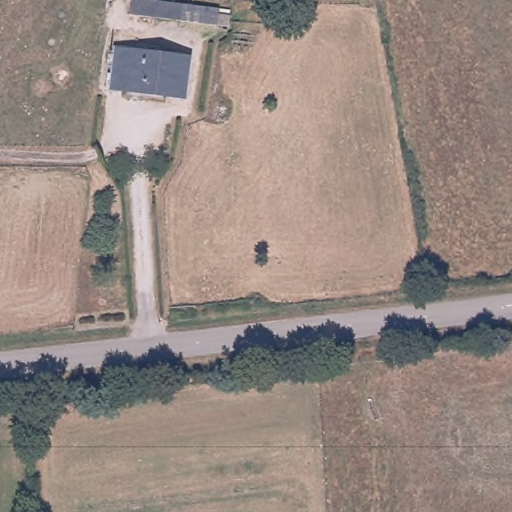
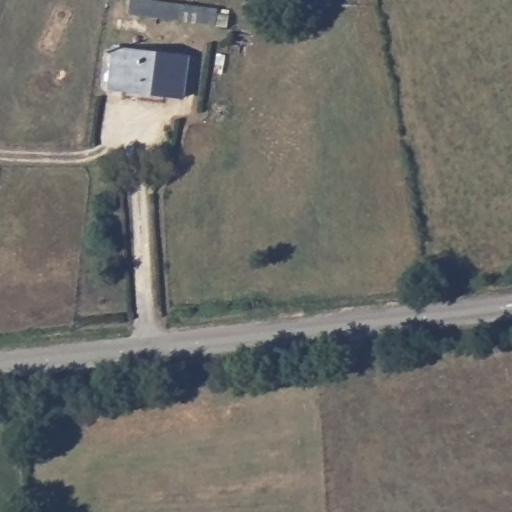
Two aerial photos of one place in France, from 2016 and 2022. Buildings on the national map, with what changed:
unchanged [(174,19),(130,14),(132,0),(166,0),(178,1),(174,19)]
unchanged [(190,56),(185,95),(113,86),(116,51),(190,56)]

